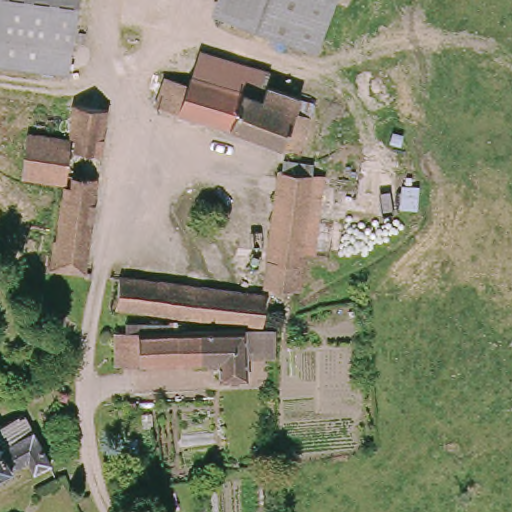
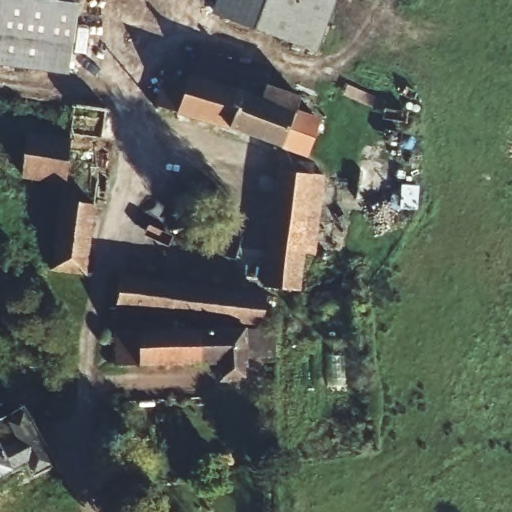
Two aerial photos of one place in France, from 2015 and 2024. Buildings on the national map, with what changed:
unchanged [(75,13),(74,19),(70,74),(0,69),(0,0),(76,0),(75,13)]
unchanged [(322,42),(214,19),(219,0),(333,0),(322,42)]
unchanged [(154,79),(176,84),(178,76),(250,92),(253,77),(289,85),(286,100),(297,102),(289,140),(147,108),(154,79)]
unchanged [(66,137),(67,103),(100,104),(94,257),(62,256),(64,183),(20,181),(22,135),(66,137)]
unchanged [(315,162),(315,234),(298,234),(298,274),(271,274),(271,162),(315,162)]
unchanged [(274,291),(271,321),(176,312),(153,310),(122,308),(124,275),(274,291)]
unchanged [(154,326),(153,310),(176,312),(177,325),(276,321),(277,348),(253,349),(254,375),(230,376),(229,358),(124,363),(122,327),(154,326)]
unchanged [(47,460),(35,468),(29,457),(0,475),(0,422),(19,410),(47,460)]

